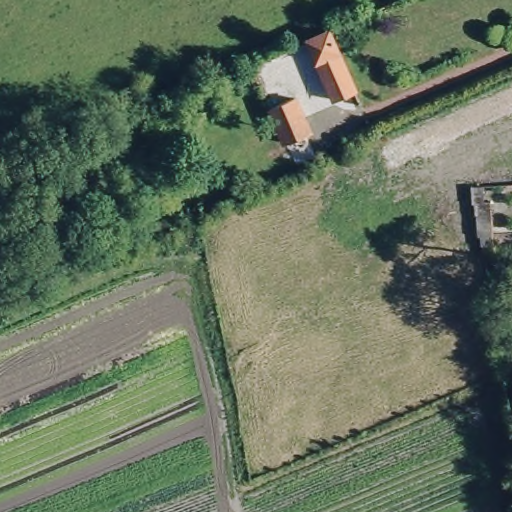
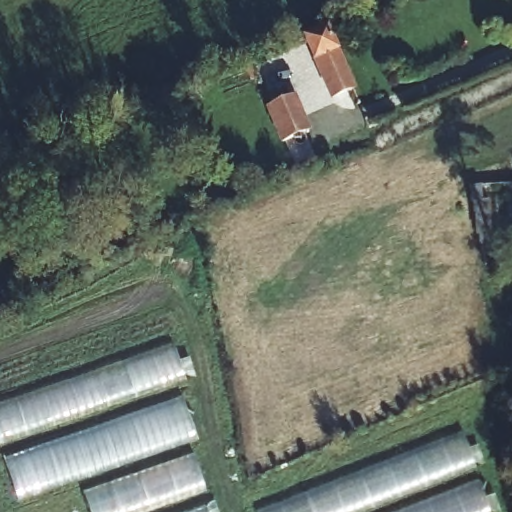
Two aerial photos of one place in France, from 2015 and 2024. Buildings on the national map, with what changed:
unchanged [(330,21),(352,87),(322,98),(301,32),(330,21)]
demolished [(490,95),(512,85),(512,112),(416,155),(405,132),(490,95)]
unchanged [(293,97),(310,135),(284,147),(268,108),(293,97)]
demolished [(416,155),(420,164),(390,177),(375,146),(405,132),(416,155)]
demolished [(447,147),(467,144),(477,186),(460,187),(455,187),(447,147)]
new [(176,385),(197,443),(190,446),(207,493),(152,512),(88,512),(77,482),(17,503),(0,458),(0,405),(173,346),(187,381),(176,385)]
new [(264,512),(465,435),(492,512),(264,512)]
new [(193,512),(210,506),(212,512),(193,512)]

